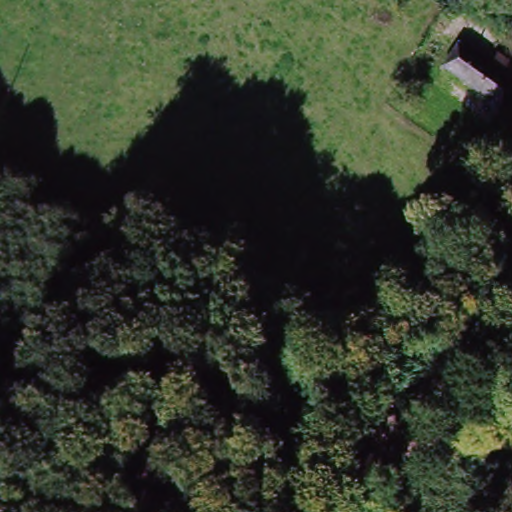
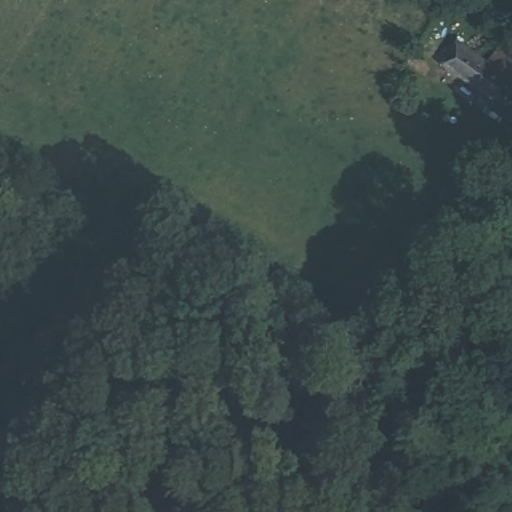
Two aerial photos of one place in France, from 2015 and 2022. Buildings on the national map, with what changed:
unchanged [(512,84),(512,91),(501,106),(442,65),(458,44),(487,64),(494,53),(512,65),(512,74),(507,81),(512,84)]

